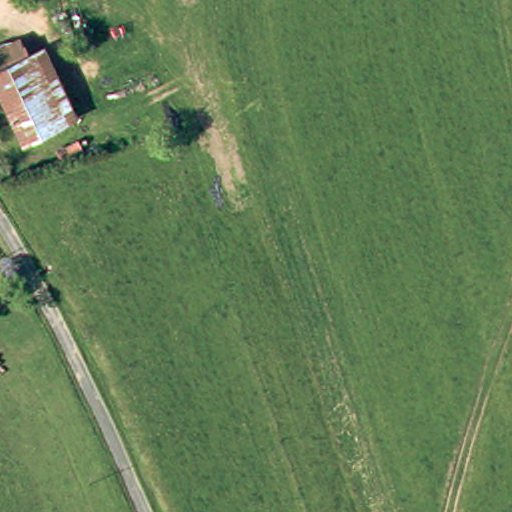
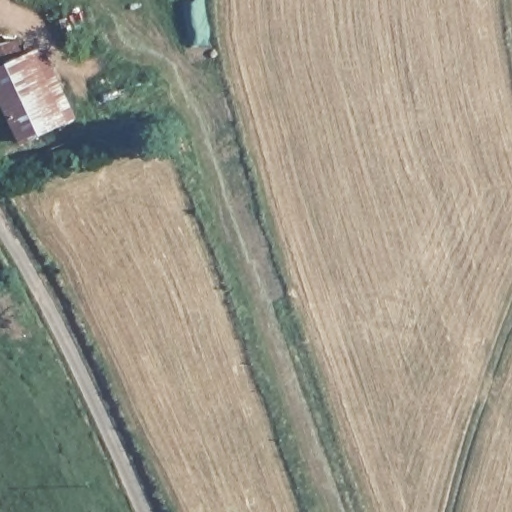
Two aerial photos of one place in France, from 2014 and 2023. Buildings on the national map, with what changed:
unchanged [(28,57),(53,100),(19,120),(0,88),(0,57),(21,45),(28,57)]
unchanged [(66,122),(32,142),(19,120),(53,100),(66,122)]

